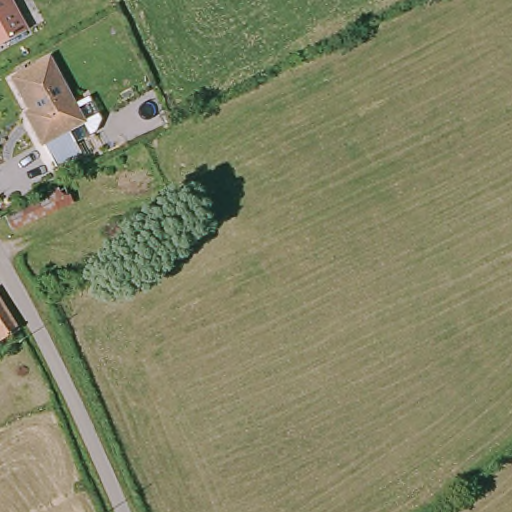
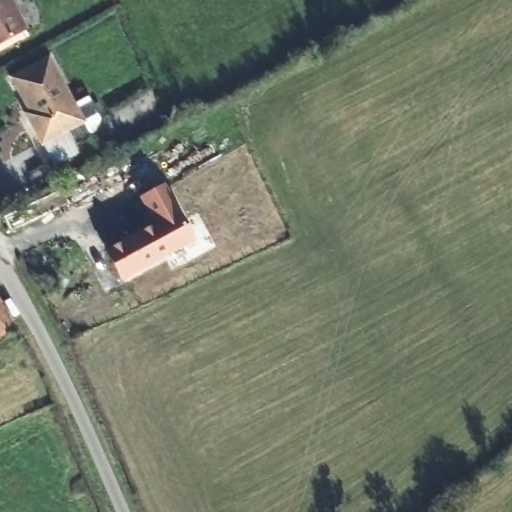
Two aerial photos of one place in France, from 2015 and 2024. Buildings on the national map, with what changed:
unchanged [(0,39),(0,0),(5,0),(20,30),(0,39)]
unchanged [(31,126),(35,124),(12,78),(49,59),(82,121),(40,144),(31,126)]
unchanged [(4,213),(67,184),(76,202),(12,234),(4,213)]
new [(102,255),(153,232),(141,205),(162,195),(187,250),(115,283),(102,255)]
unchanged [(0,337),(0,327),(4,335),(0,337)]

